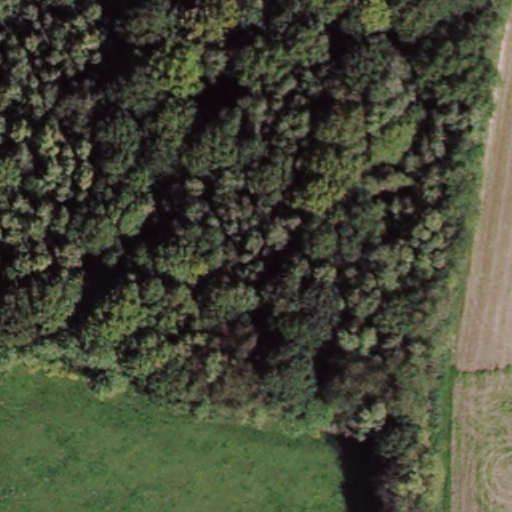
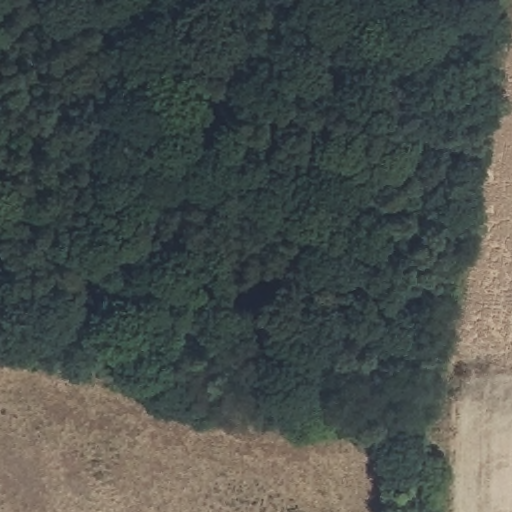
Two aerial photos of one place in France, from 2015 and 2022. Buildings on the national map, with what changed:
unchanged [(293,403),(294,392),(330,400),(330,411),(293,403)]

